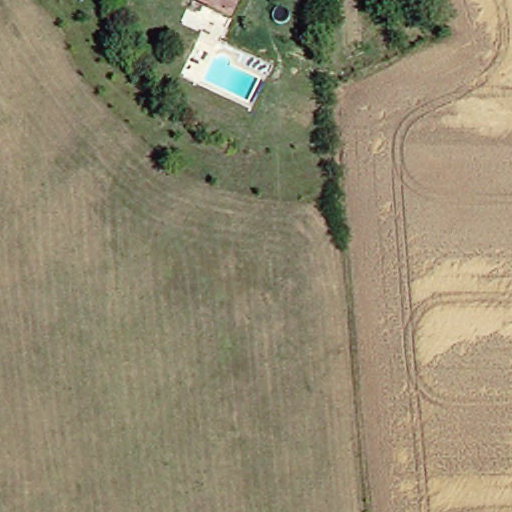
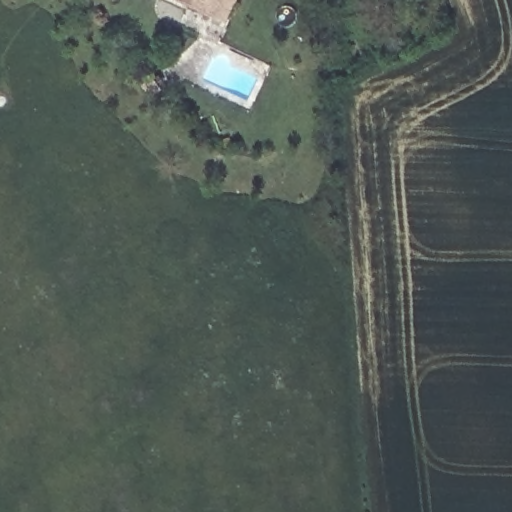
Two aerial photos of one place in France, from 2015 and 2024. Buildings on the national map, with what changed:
unchanged [(185,0),(231,0),(224,17),(185,0)]

